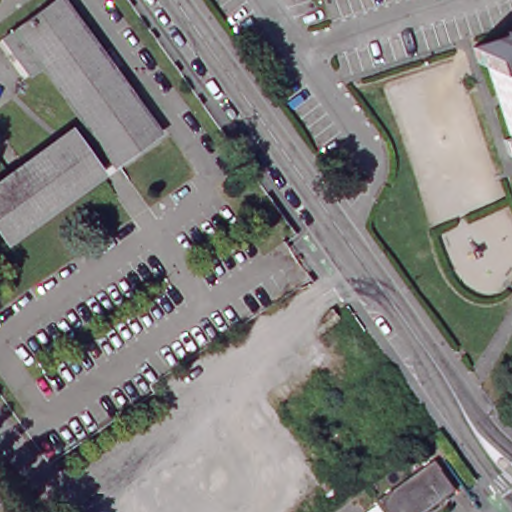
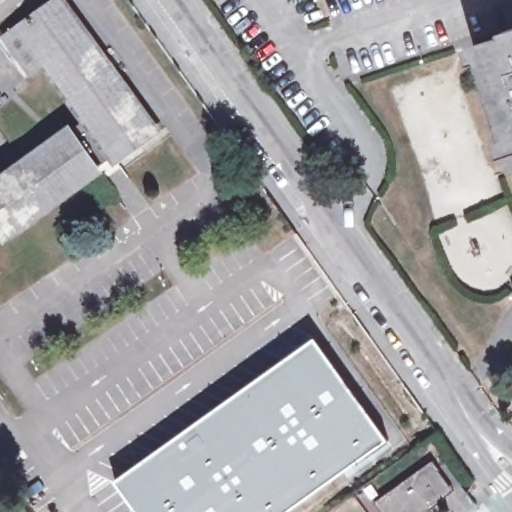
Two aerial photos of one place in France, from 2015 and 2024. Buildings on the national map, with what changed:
unchanged [(106,167),(12,235),(0,218),(0,181),(90,115),(50,60),(37,70),(10,32),(55,0),(69,0),(162,129),(118,161),(113,155),(107,160),(102,162),(106,167)]
unchanged [(504,140),(511,137),(485,61),(480,62),(474,47),(510,36),(510,31),(512,30),(512,154),(510,155),(504,140)]
new [(387,442),(290,512),(134,512),(114,483),(314,340),(387,442)]
unchanged [(437,455),(445,465),(460,487),(449,495),(425,512),(388,512),(378,498),(437,455)]

